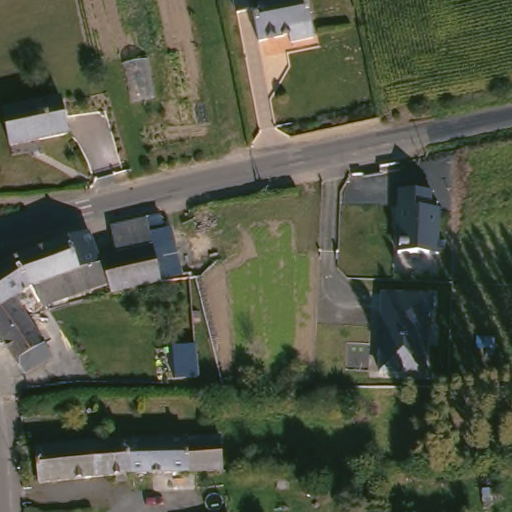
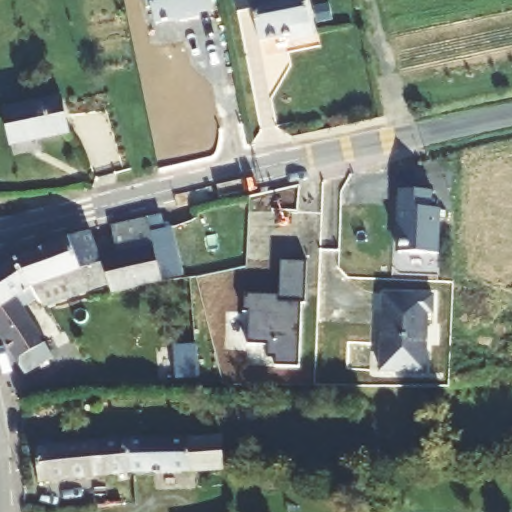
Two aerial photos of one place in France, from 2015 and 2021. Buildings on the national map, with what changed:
new [(197,14),(199,19),(180,23),(179,20),(154,25),(151,7),(146,8),(144,0),(210,0),(212,11),(197,14)]
unchanged [(293,43),(291,36),(259,42),(252,14),(239,14),(237,0),(305,0),(313,39),(293,43)]
unchanged [(69,136),(11,148),(5,114),(63,102),(69,136)]
unchanged [(432,191),(431,209),(440,210),(437,256),(398,253),(399,227),(395,227),(398,189),(432,191)]
unchanged [(156,276),(145,215),(165,210),(171,234),(193,231),(198,266),(189,268),(156,276)]
unchanged [(156,276),(109,287),(108,279),(101,253),(115,250),(113,225),(145,215),(156,276)]
unchanged [(101,253),(108,279),(85,288),(67,240),(95,229),(101,253)]
unchanged [(85,288),(61,298),(58,291),(41,249),(67,240),(85,288)]
unchanged [(40,307),(35,300),(34,297),(30,289),(16,259),(41,249),(58,291),(61,298),(40,307)]
unchanged [(34,297),(20,308),(41,347),(14,365),(0,345),(0,271),(16,259),(30,289),(34,297)]
new [(241,295),(275,297),(278,261),(305,262),(303,305),(299,305),(295,370),(270,368),(270,361),(263,360),(264,347),(243,346),(245,313),(240,312),(241,295)]
unchanged [(382,291),(433,293),(436,312),(429,313),(428,371),(379,367),(382,291)]
unchanged [(190,348),(189,380),(166,382),(166,349),(190,348)]
unchanged [(219,441),(222,480),(137,482),(138,443),(219,441)]
unchanged [(86,445),(138,443),(137,482),(43,484),(41,446),(86,445)]

